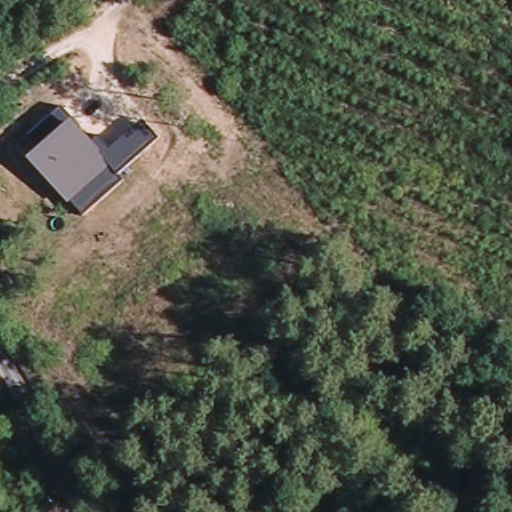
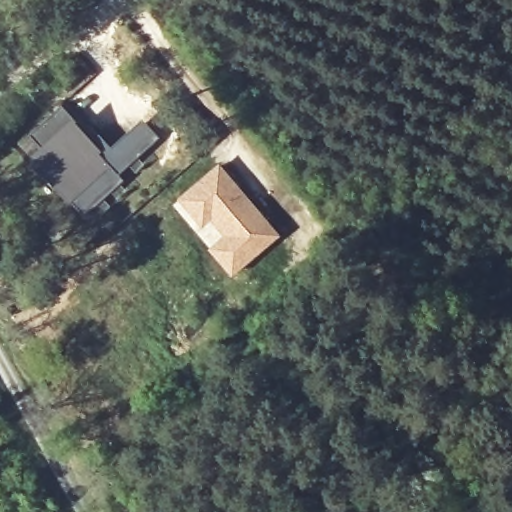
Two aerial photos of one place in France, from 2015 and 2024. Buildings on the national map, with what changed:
unchanged [(93,142),(100,135),(110,149),(144,119),(160,137),(120,174),(124,180),(81,218),(18,147),(62,107),(93,142)]
new [(220,169),(241,194),(237,198),(252,217),(257,213),(278,237),(233,276),(212,252),(227,238),(211,219),(203,227),(181,201),(220,169)]

